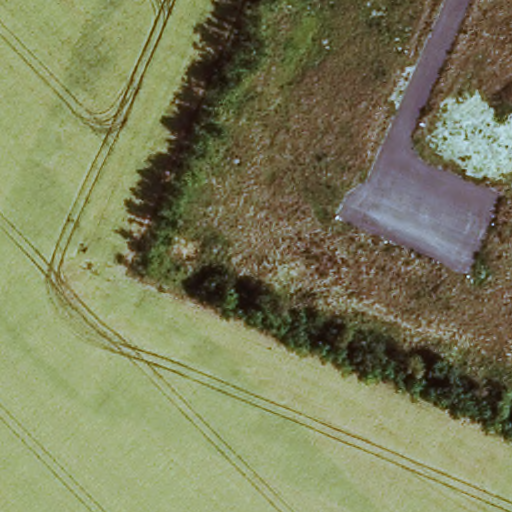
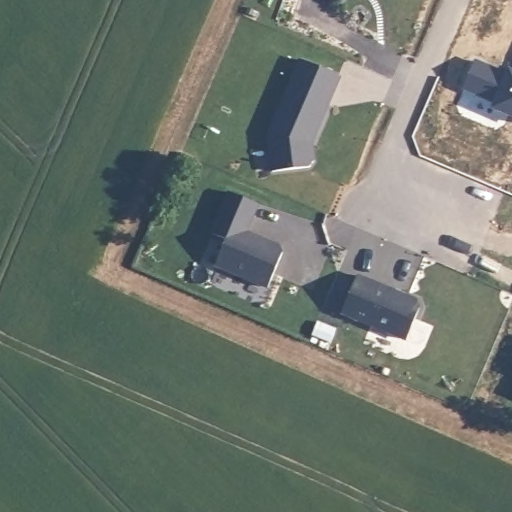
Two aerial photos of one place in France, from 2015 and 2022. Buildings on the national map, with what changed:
new [(340,0),(346,0),(345,2),(340,0)]
new [(290,88),(291,88),(303,60),(339,76),(327,104),(327,105),(316,132),(315,132),(311,141),(312,142),(314,161),(310,167),(273,171),(269,135),(290,88)]
new [(230,191),(258,203),(246,231),(280,246),(283,253),(268,287),(215,264),(226,239),(212,233),(230,191)]
new [(357,276),(417,301),(420,308),(406,340),(342,313),(357,276)]

